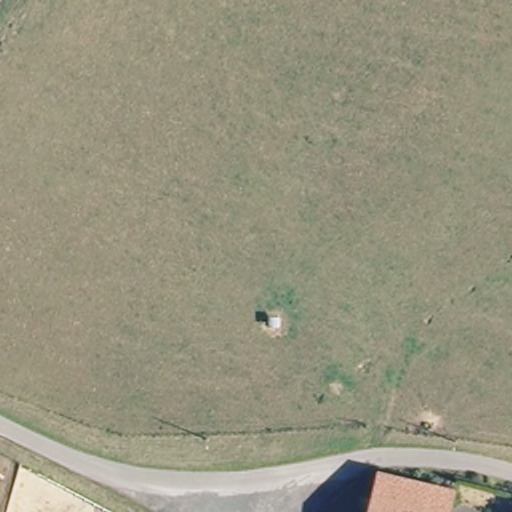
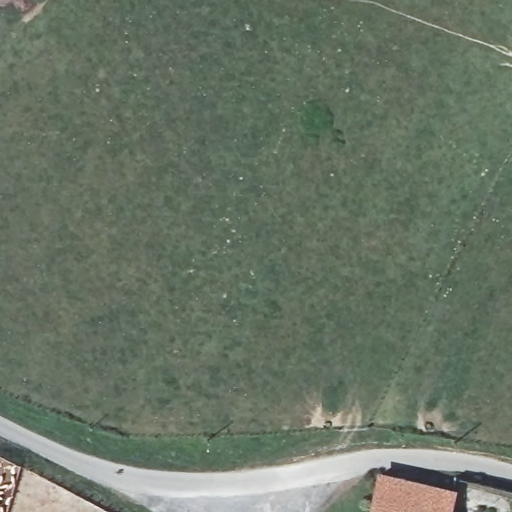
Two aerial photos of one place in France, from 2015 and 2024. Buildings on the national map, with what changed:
unchanged [(382,479),(455,492),(451,512),(374,512),(382,479)]

